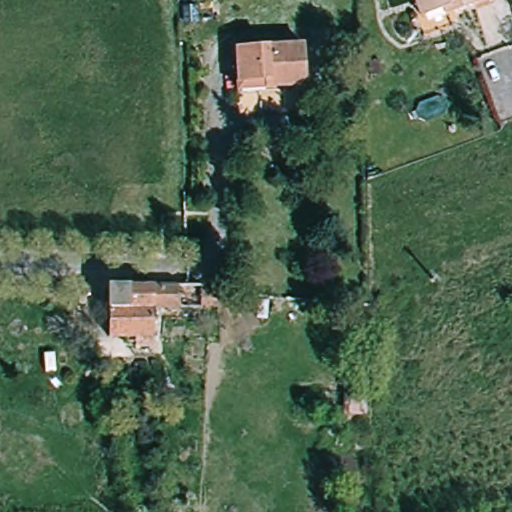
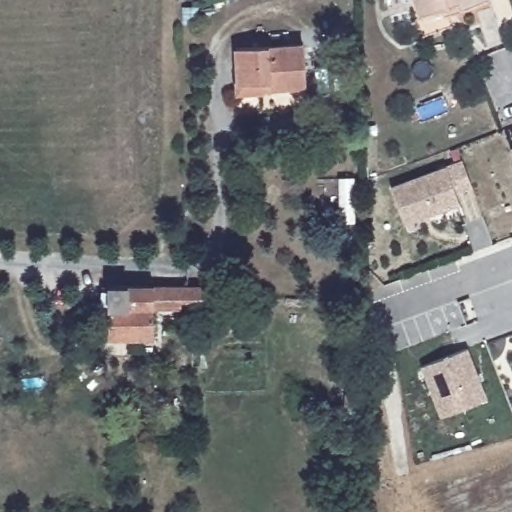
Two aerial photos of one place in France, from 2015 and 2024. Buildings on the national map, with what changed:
unchanged [(492,0),(493,0),(450,15),(448,9),(432,15),(425,18),(419,0),(492,0)]
unchanged [(237,83),(235,49),(302,45),(304,86),(265,89),(238,90),(237,83)]
new [(510,149),(512,148),(512,154),(510,149)]
new [(433,214),(405,225),(391,188),(463,161),(472,187),(456,193),(459,200),(460,204),(433,214)]
unchanged [(251,305),(201,301),(201,304),(153,303),(154,333),(108,333),(108,281),(153,282),(201,282),(201,284),(252,290),(251,305)]
new [(420,366),(468,347),(488,399),(440,417),(420,366)]
new [(511,358),(512,357),(512,360),(511,358)]

